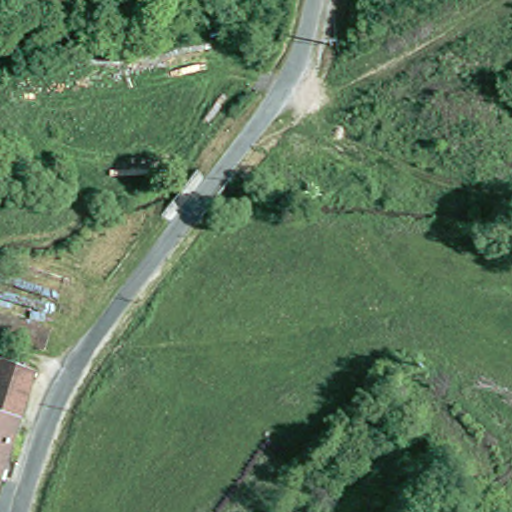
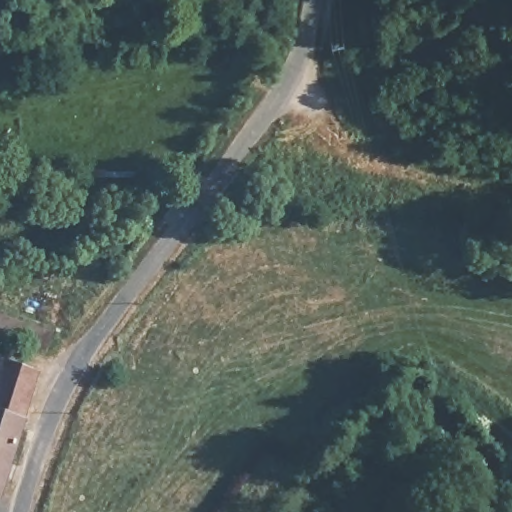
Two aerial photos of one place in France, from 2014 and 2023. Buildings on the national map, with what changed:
unchanged [(0,334),(0,291),(45,305),(32,345),(0,334)]
unchanged [(0,482),(0,362),(32,370),(0,482)]

